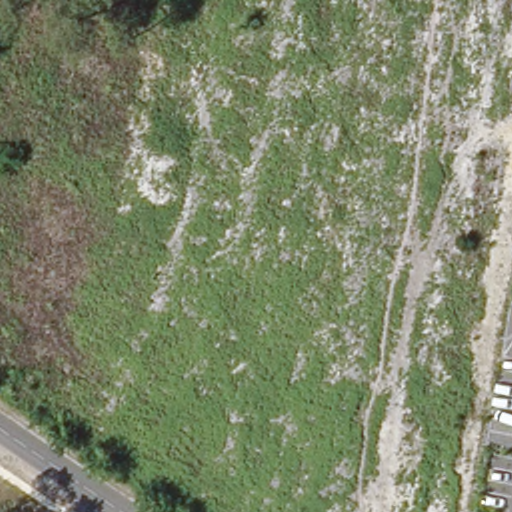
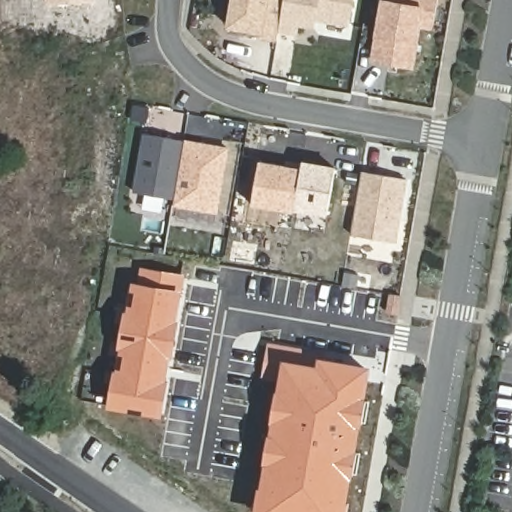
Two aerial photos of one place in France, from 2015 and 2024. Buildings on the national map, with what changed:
new [(95,1),(47,4),(47,0),(95,0),(95,1)]
new [(277,40),(260,37),(261,32),(229,27),(233,0),(284,0),(277,40)]
new [(284,0),(352,0),(348,25),(315,19),(313,27),(297,24),(296,33),(279,30),(284,0)]
new [(431,28),(420,25),(412,67),(372,60),(383,0),(436,0),(431,28)]
new [(184,141),(174,200),(135,192),(145,134),(184,141)]
new [(227,148),(216,212),(173,205),(184,141),(227,148)]
new [(285,166),(286,161),(302,164),(293,212),(251,205),(259,161),(285,166)]
new [(335,169),(327,215),(294,209),(302,163),(335,169)]
new [(406,180),(395,242),(350,235),(361,172),(406,180)]
new [(137,283),(140,267),(184,275),(182,290),(179,320),(172,358),(170,358),(167,378),(169,378),(161,417),(108,407),(124,310),(127,311),(132,281),(137,283)]
new [(390,294),(400,296),(397,315),(386,312),(390,294)]
new [(347,512),(255,512),(278,383),(261,379),(268,342),(318,357),(371,366),(347,512)]

